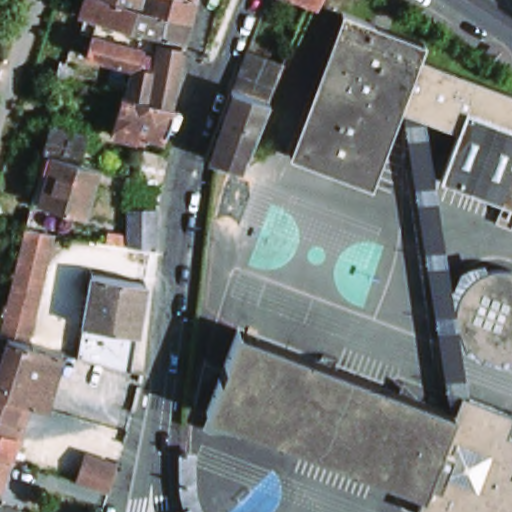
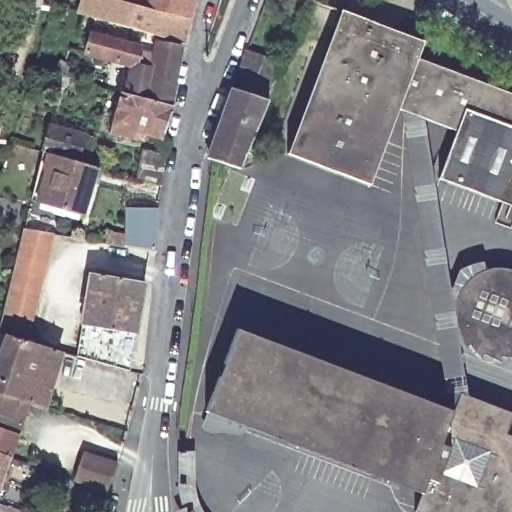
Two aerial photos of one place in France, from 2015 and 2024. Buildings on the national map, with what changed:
unchanged [(90,0),(107,0),(187,22),(185,36),(182,45),(97,22),(84,19),(90,0)]
unchanged [(193,0),(187,22),(107,0),(193,0)]
unchanged [(312,0),(325,0),(323,5),(312,0)]
unchanged [(455,134),(425,124),(398,114),(369,188),(287,157),(339,14),(424,44),(417,62),(512,97),(512,210),(439,182),(455,134)]
unchanged [(125,98),(129,69),(86,57),(97,22),(182,45),(178,66),(176,79),(171,110),(125,98)]
unchanged [(236,165),(236,161),(207,155),(230,90),(236,73),(245,50),(285,64),(274,88),(267,103),(240,166),(236,165)]
unchanged [(145,139),(142,146),(133,142),(132,145),(107,138),(120,97),(125,98),(171,110),(172,110),(160,142),(145,139)]
unchanged [(398,114),(425,124),(451,287),(457,278),(457,271),(463,266),(485,258),(489,268),(500,266),(512,268),(512,362),(510,363),(494,363),(477,357),(461,345),(468,397),(461,394),(454,412),(411,167),(398,114)]
unchanged [(41,152),(48,123),(84,134),(77,162),(42,152),(41,152)]
unchanged [(42,152),(77,162),(99,168),(84,213),(36,198),(48,160),(41,158),(42,152)]
unchanged [(138,182),(142,155),(165,160),(165,166),(162,178),(161,188),(138,182)]
unchanged [(23,231),(28,210),(126,235),(128,209),(159,208),(157,251),(96,241),(70,237),(51,235),(23,231)]
unchanged [(14,269),(23,231),(51,235),(29,332),(1,326),(14,269)]
unchanged [(89,274),(90,274),(145,282),(130,371),(75,355),(89,274)]
unchanged [(454,412),(461,394),(468,397),(512,414),(512,427),(509,436),(512,438),(512,512),(415,512),(421,496),(206,414),(239,330),(454,412)]
unchanged [(0,423),(0,332),(6,333),(63,351),(49,408),(28,401),(18,429),(0,423)]
unchanged [(0,455),(0,423),(18,429),(8,458),(0,455)]
unchanged [(174,511),(182,507),(179,489),(177,466),(177,449),(196,450),(196,472),(199,501),(205,512),(174,512),(174,511)]
unchanged [(8,458),(0,484),(0,455),(8,458)]
unchanged [(109,491),(76,480),(81,455),(116,463),(109,491)]

